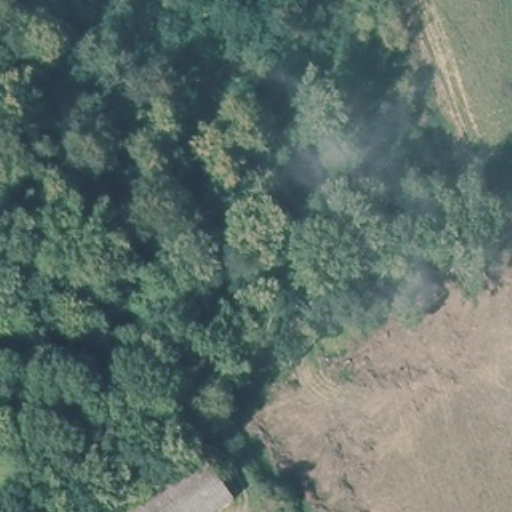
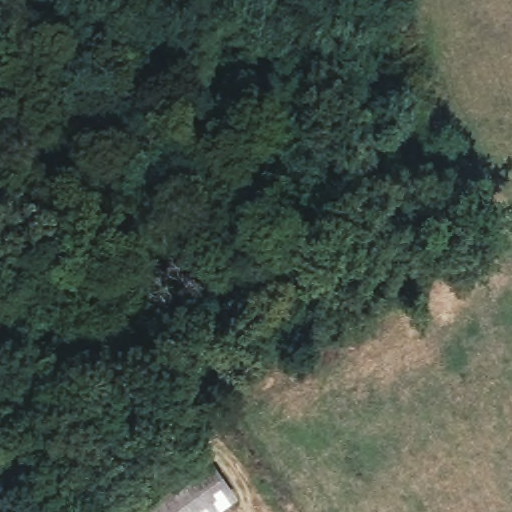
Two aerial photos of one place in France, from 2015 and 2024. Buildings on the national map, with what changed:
unchanged [(236,496),(215,512),(134,512),(205,455),(236,496)]

